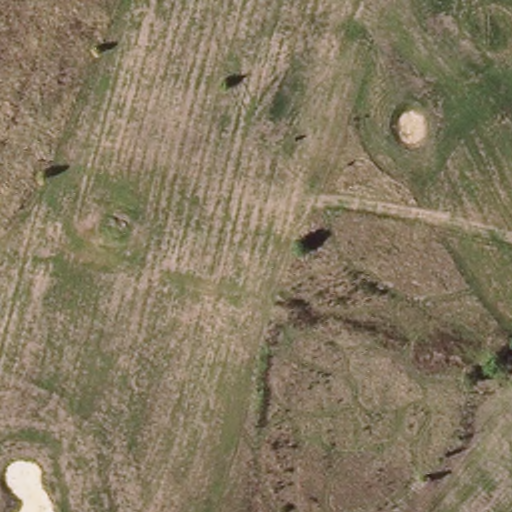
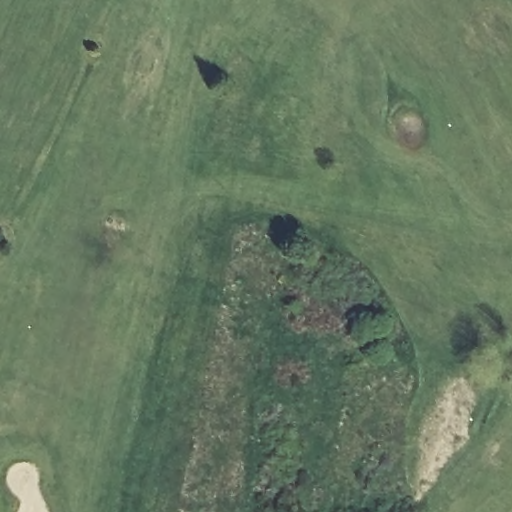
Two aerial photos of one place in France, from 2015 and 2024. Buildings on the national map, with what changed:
[]

